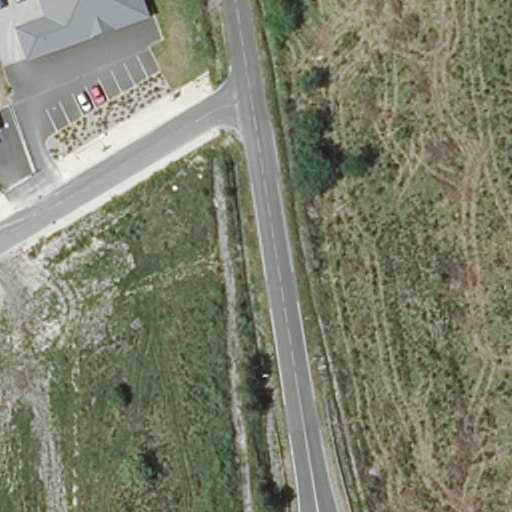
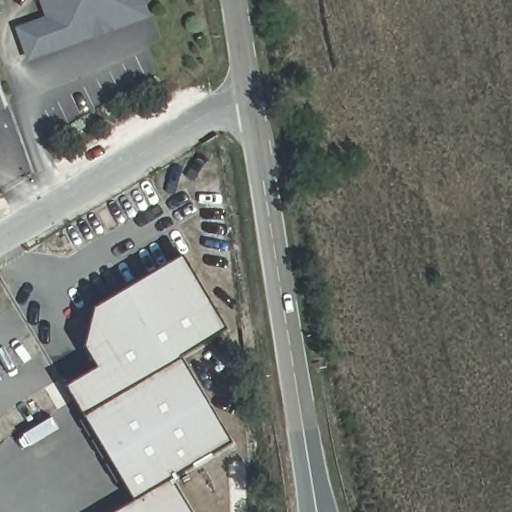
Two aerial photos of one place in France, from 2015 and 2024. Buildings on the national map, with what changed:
unchanged [(151,19),(29,62),(15,28),(47,17),(41,0),(145,0),(151,19)]
new [(228,337),(181,365),(233,451),(173,486),(188,512),(125,512),(133,507),(65,393),(96,375),(84,355),(94,315),(183,262),(228,337)]

